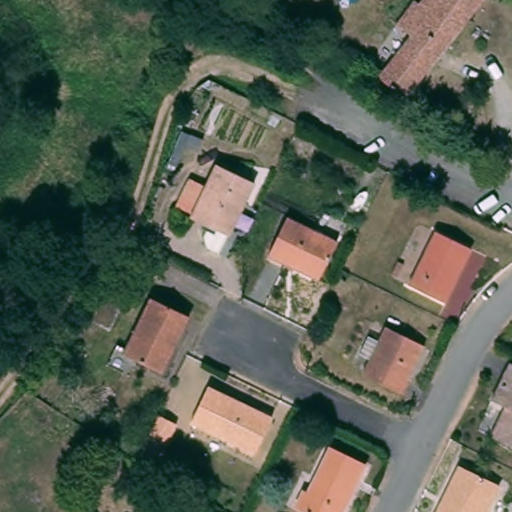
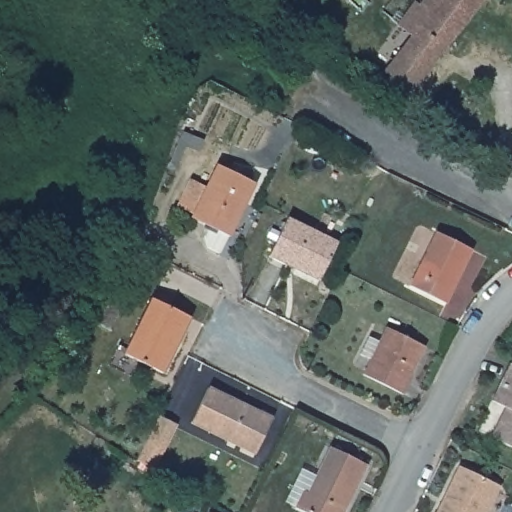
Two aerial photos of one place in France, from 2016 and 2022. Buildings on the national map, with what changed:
unchanged [(421,0),(480,0),(404,99),(375,79),(408,36),(395,26),(415,0),(419,3),(421,0)]
unchanged [(201,189),(213,164),(252,183),(217,253),(205,248),(201,237),(206,226),(187,217),(189,213),(171,205),(183,181),(201,189)]
unchanged [(512,172),(512,177),(509,176),(512,172)]
unchanged [(335,243),(317,281),(266,258),(285,219),(335,243)]
unchanged [(464,253),(438,307),(402,290),(429,237),(464,253)]
unchanged [(186,318),(159,374),(121,356),(149,299),(186,318)]
unchanged [(361,339),(373,344),(380,328),(418,345),(395,393),(357,376),(364,362),(352,357),(361,339)]
unchanged [(512,362),(512,446),(488,435),(503,406),(488,399),(507,360),(512,362)]
unchanged [(205,432),(189,423),(207,391),(223,397),(268,419),(251,453),(205,432)]
unchanged [(178,422),(158,469),(138,457),(157,412),(178,422)]
unchanged [(361,464),(338,512),(299,512),(290,508),(298,494),(302,496),(326,448),(361,464)]
unchanged [(497,484),(484,512),(433,512),(457,465),(497,484)]
unchanged [(214,512),(208,512),(209,510),(214,512)]

